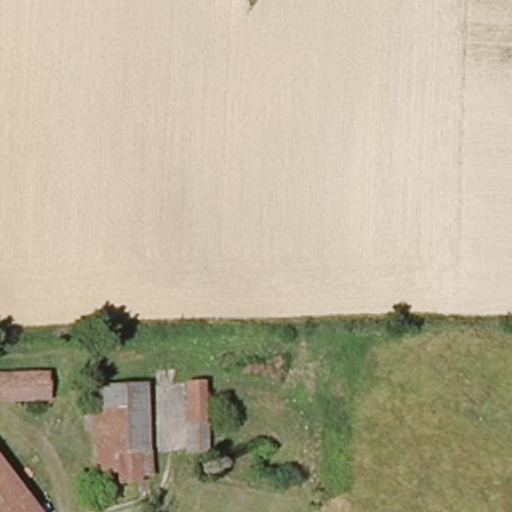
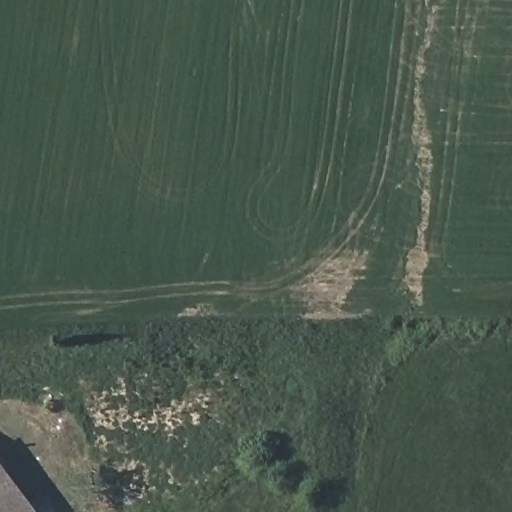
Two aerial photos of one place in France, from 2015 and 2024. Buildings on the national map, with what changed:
unchanged [(54,398),(0,400),(0,376),(54,373),(54,398)]
unchanged [(185,457),(186,382),(214,382),(213,456),(185,457)]
new [(152,477),(131,479),(130,472),(94,474),(89,386),(147,383),(152,477)]
demolished [(149,477),(160,477),(161,499),(101,501),(100,483),(109,483),(106,408),(143,407),(149,477)]
unchanged [(20,484),(0,500),(0,456),(20,484)]
unchanged [(42,512),(0,512),(0,500),(20,484),(42,512)]

